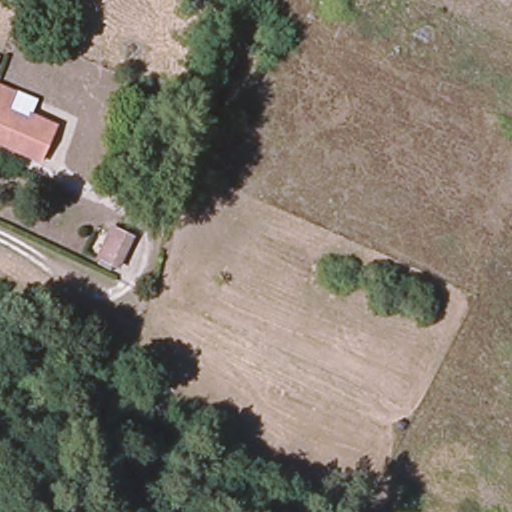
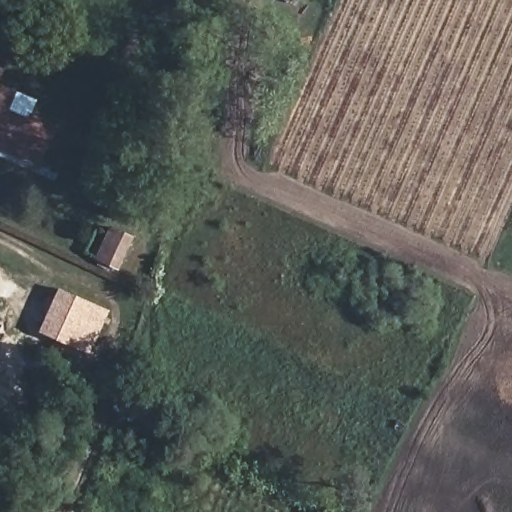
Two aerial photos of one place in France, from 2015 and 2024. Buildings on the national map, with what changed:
unchanged [(59,125),(40,170),(0,152),(0,99),(59,125)]
unchanged [(127,244),(113,277),(95,269),(109,235),(127,244)]
new [(60,288),(112,310),(90,354),(41,332),(60,288)]

